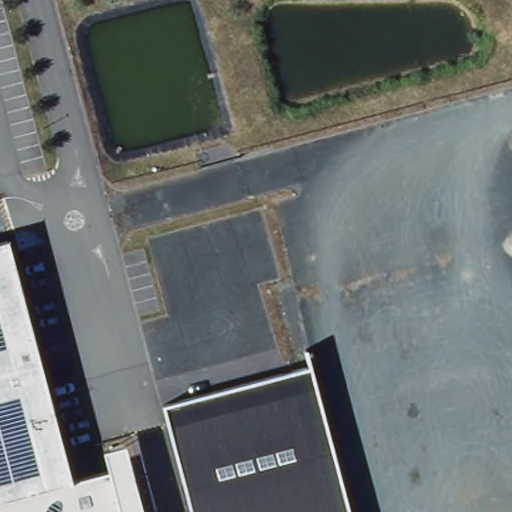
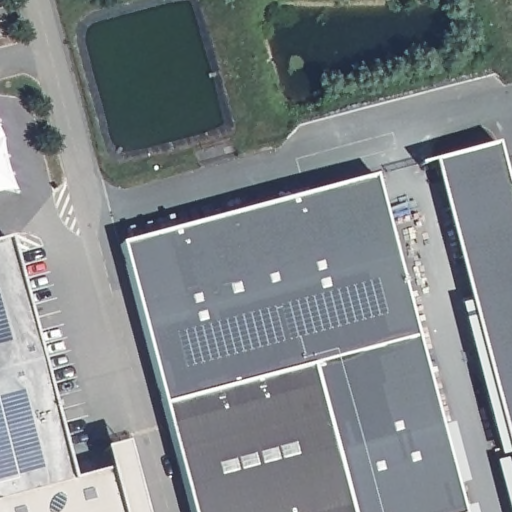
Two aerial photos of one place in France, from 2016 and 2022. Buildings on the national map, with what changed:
new [(495,146),(512,209),(512,461),(433,164),(495,146)]
new [(161,405),(121,245),(373,179),(461,512),(351,512),(310,366),(161,405)]
unchanged [(72,475),(106,466),(100,447),(126,440),(145,512),(0,512),(0,240),(9,237),(72,475)]
unchanged [(190,512),(161,405),(310,366),(351,512),(190,512)]

